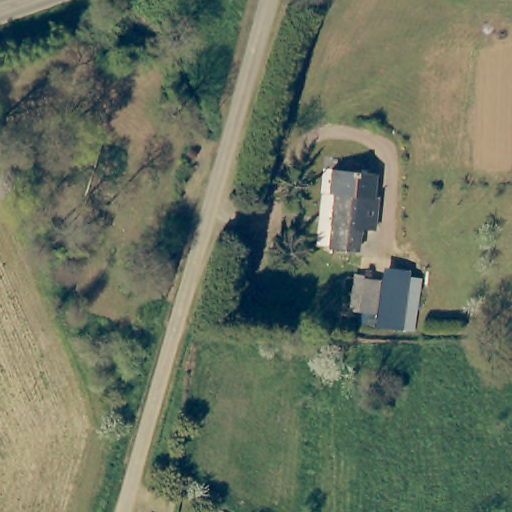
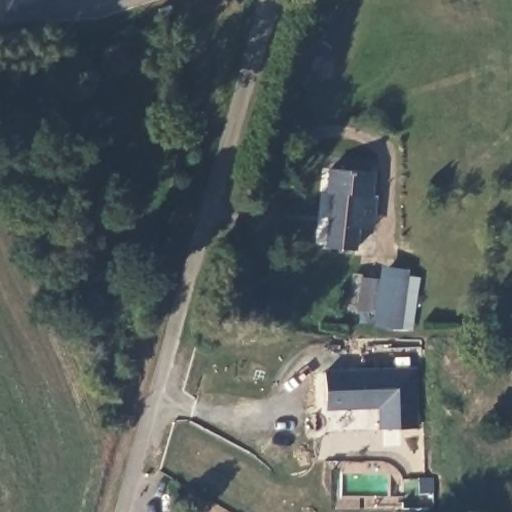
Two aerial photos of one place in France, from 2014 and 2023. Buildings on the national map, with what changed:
unchanged [(366,199),(373,199),(369,220),(356,219),(353,248),(322,244),(328,190),(323,189),(325,172),(367,175),(366,199)]
unchanged [(405,285),(400,330),(348,324),(357,278),(405,285)]
new [(380,409),(327,411),(324,370),(416,368),(420,429),(380,430),(380,409)]

